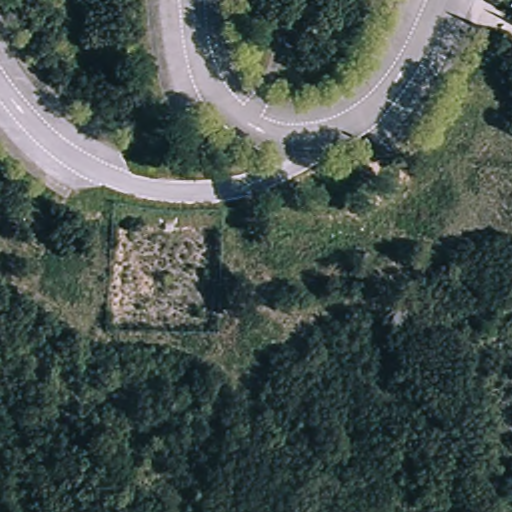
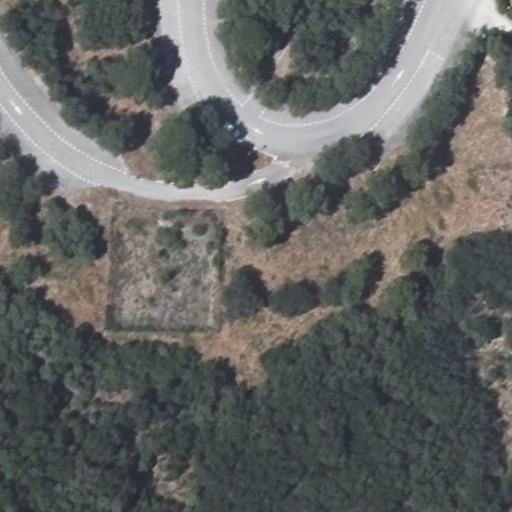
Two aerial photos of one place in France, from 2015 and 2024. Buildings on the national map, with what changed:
[]

